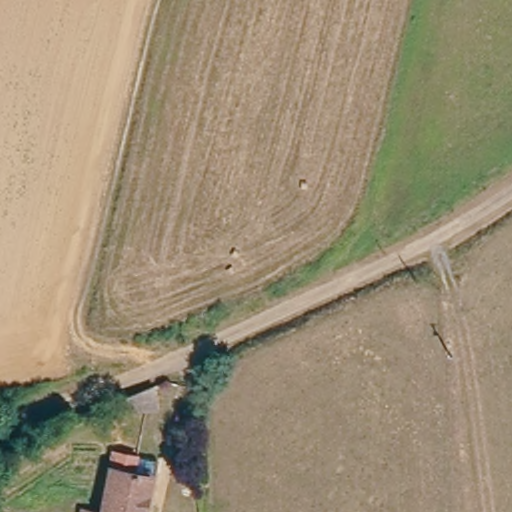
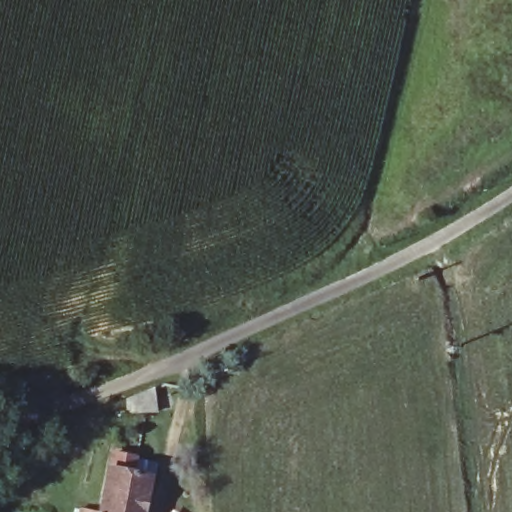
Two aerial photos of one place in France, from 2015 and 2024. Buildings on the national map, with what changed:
unchanged [(115,422),(113,410),(150,395),(155,408),(138,415),(137,424),(115,422)]
unchanged [(103,506),(108,453),(134,455),(133,472),(148,474),(145,512),(82,512),(82,505),(103,506)]

